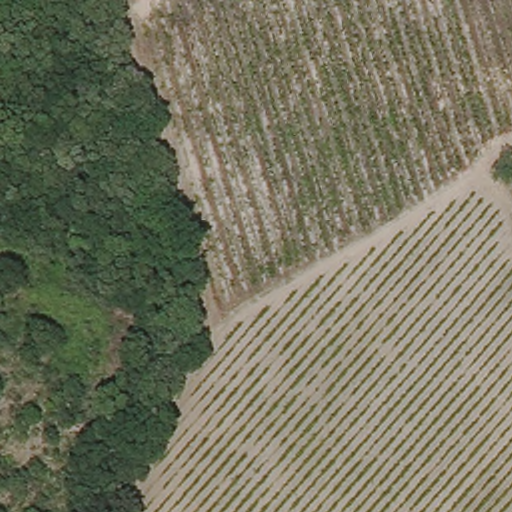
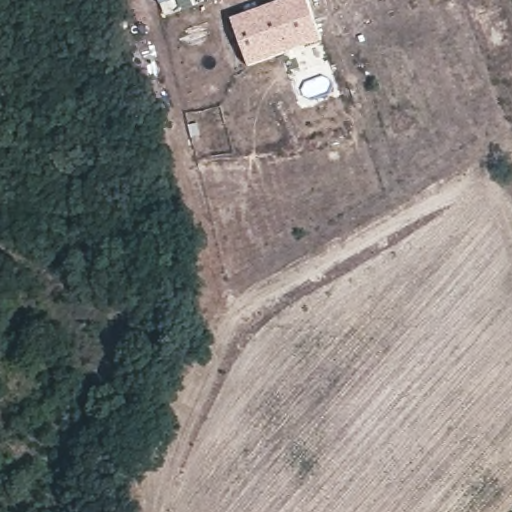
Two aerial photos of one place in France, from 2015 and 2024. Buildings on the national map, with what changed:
new [(282,0),(306,0),(322,38),(250,66),(231,19),(282,0)]

